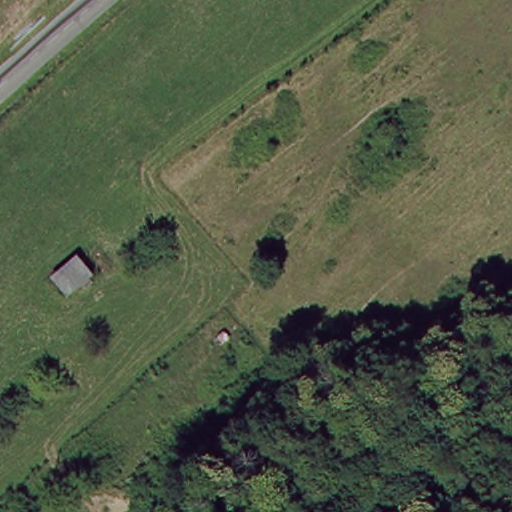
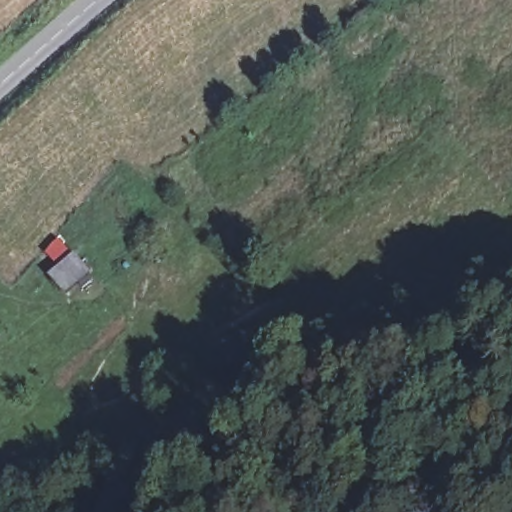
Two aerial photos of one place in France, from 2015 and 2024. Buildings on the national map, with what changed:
unchanged [(75,251),(93,273),(68,293),(53,274),(75,251)]

